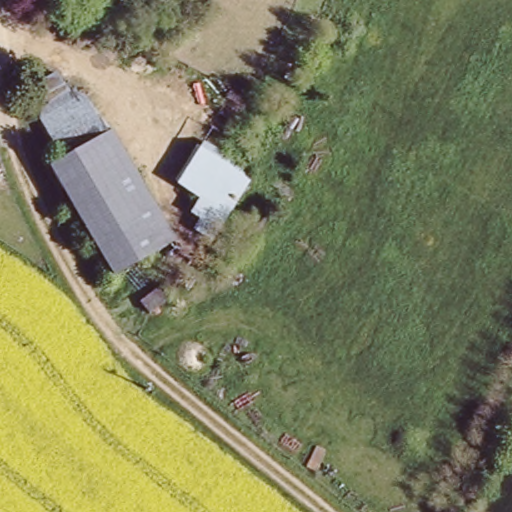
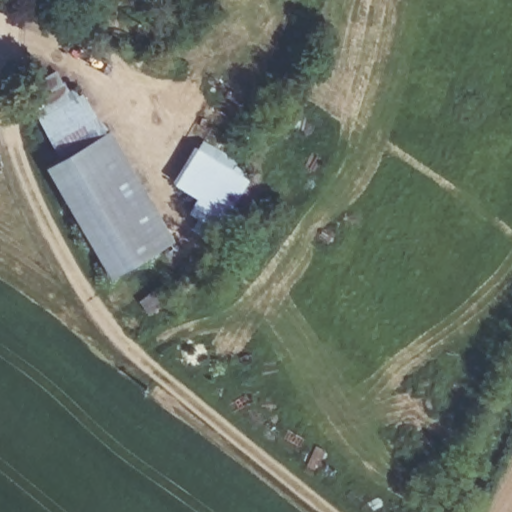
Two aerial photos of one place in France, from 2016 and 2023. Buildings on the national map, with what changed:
unchanged [(93,102),(112,124),(64,153),(37,109),(24,96),(56,64),(93,102)]
unchanged [(179,232),(116,270),(50,162),(64,153),(112,124),(179,232)]
unchanged [(195,228),(203,220),(191,212),(201,195),(177,183),(202,143),(222,155),(257,175),(214,236),(195,228)]

